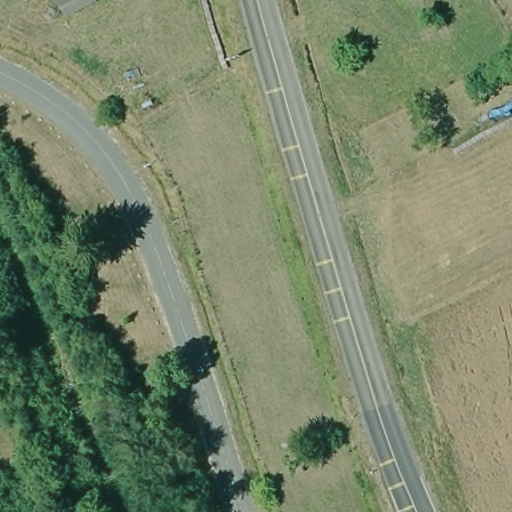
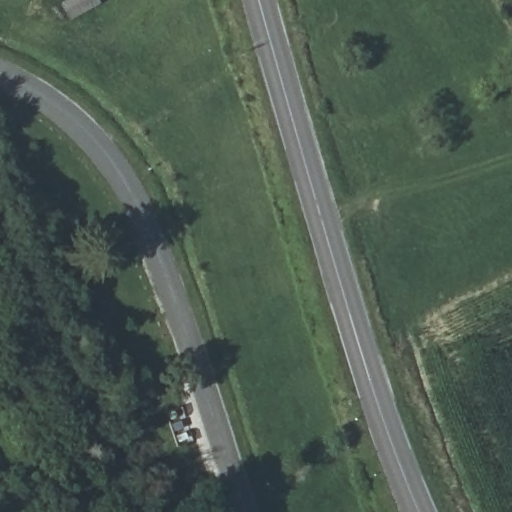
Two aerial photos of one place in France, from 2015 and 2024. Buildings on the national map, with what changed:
unchanged [(58,0),(95,0),(97,5),(65,22),(55,2),(58,0)]

